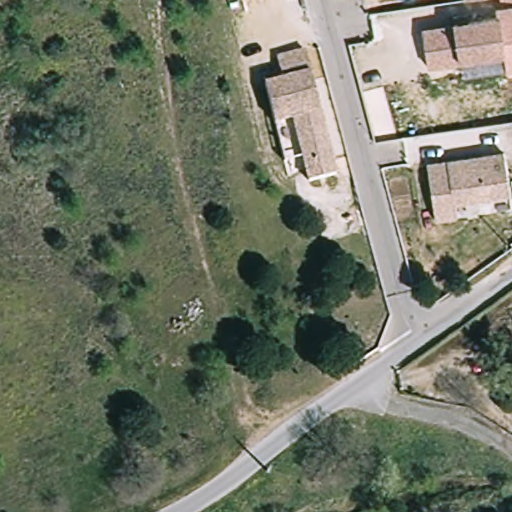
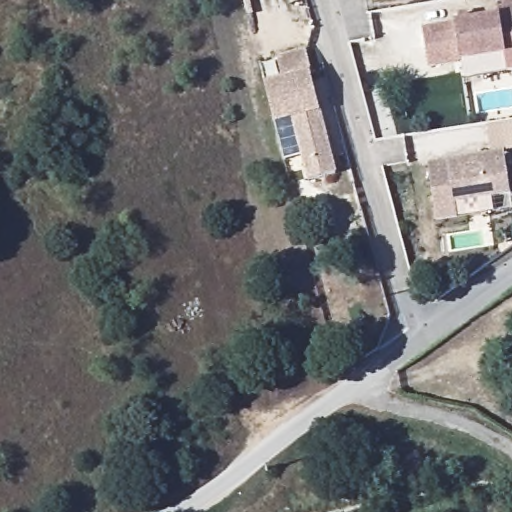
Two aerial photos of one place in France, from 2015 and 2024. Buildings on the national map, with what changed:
unchanged [(505,46),(503,38),(500,20),(498,10),(494,8),(512,6),(512,76),(507,77),(506,72),(465,80),(460,56),(460,55),(505,46)]
unchanged [(453,20),(452,19),(496,10),(498,10),(500,20),(503,38),(505,46),(460,55),(460,56),(428,64),(427,59),(419,30),(453,20)]
unchanged [(299,48),(306,70),(305,70),(337,170),(310,178),(303,154),(291,116),(273,121),(261,84),(278,79),(271,57),(299,48)]
unchanged [(502,150),(511,190),(457,202),(460,216),(439,221),(427,166),(502,150)]

